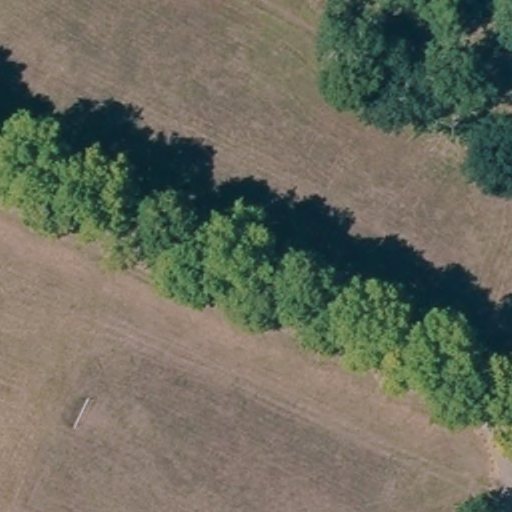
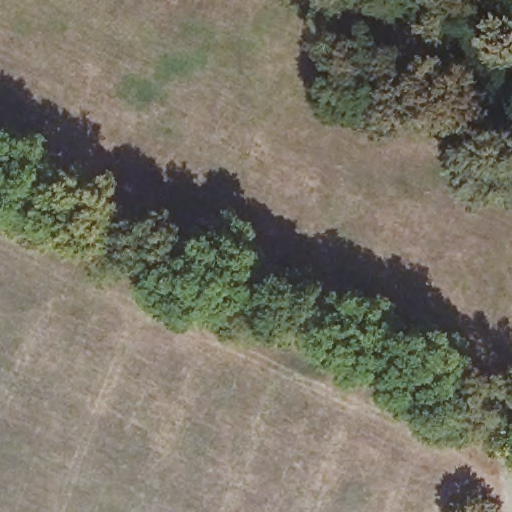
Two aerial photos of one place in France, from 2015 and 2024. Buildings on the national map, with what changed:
[]

